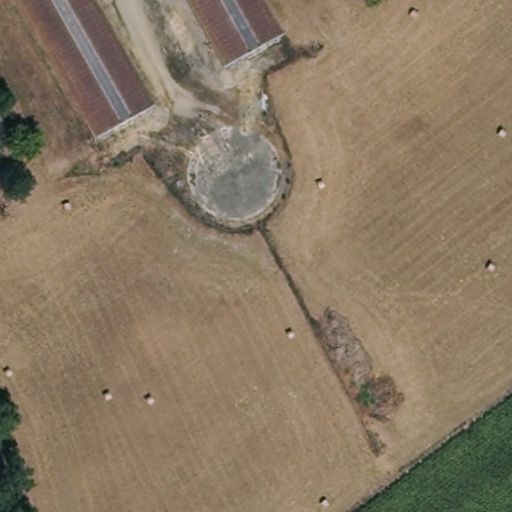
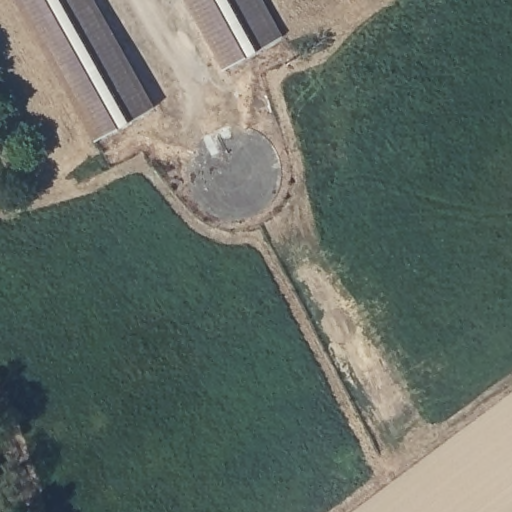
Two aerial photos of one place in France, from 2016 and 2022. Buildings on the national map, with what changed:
unchanged [(90,140),(12,0),(90,0),(150,106),(90,140)]
unchanged [(219,69),(181,0),(259,0),(278,35),(219,69)]

